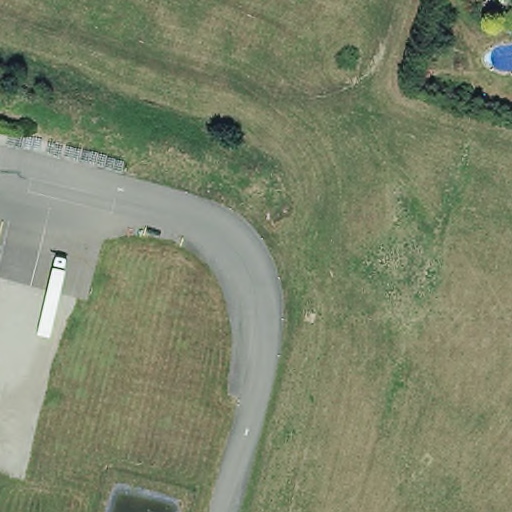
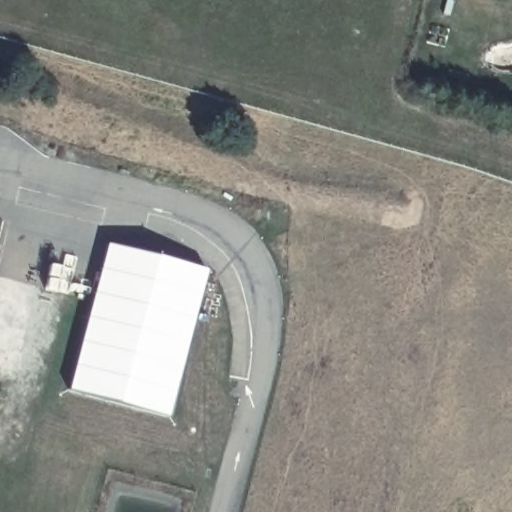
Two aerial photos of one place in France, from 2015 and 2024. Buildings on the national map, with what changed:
new [(106,242),(207,268),(168,417),(67,390),(106,242)]
new [(49,262),(69,265),(71,260),(73,260),(66,293),(43,289),(49,262)]

